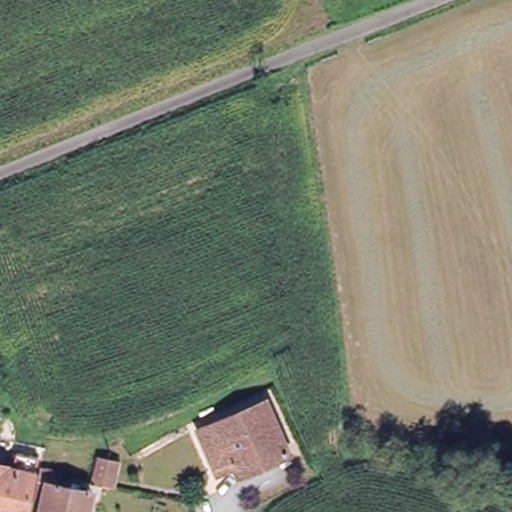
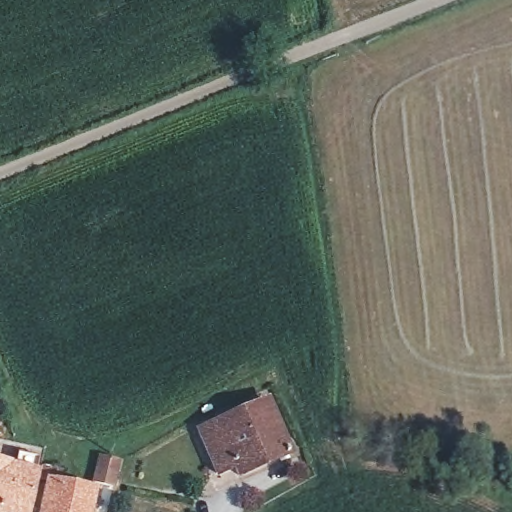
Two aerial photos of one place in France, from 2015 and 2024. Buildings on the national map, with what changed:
unchanged [(195,434),(261,402),(282,444),(285,449),(236,474),(230,465),(211,473),(207,463),(195,434)]
unchanged [(23,512),(0,512),(0,465),(6,467),(30,473),(23,512)]
unchanged [(94,488),(101,465),(119,471),(115,487),(114,493),(101,490),(94,488)]
unchanged [(86,494),(83,512),(41,512),(45,486),(86,494)]

